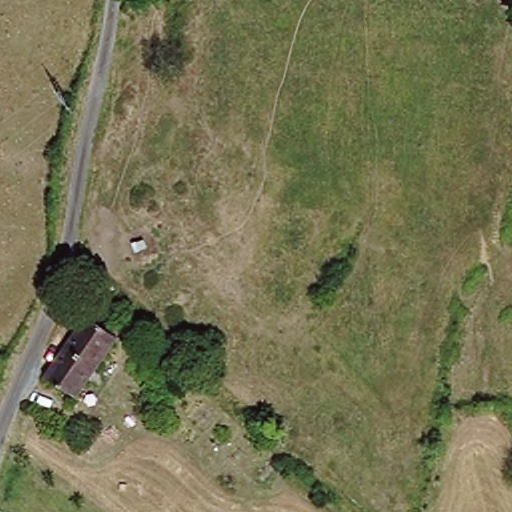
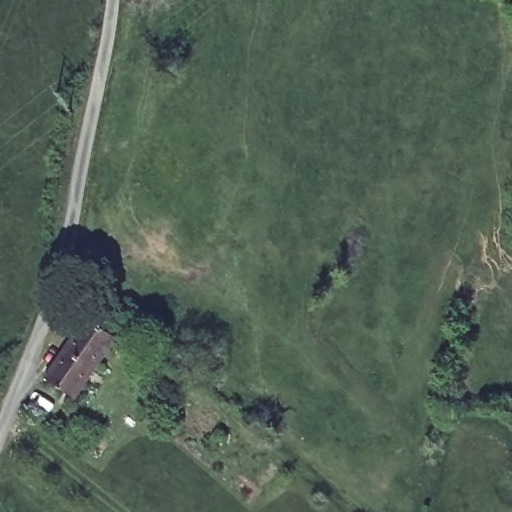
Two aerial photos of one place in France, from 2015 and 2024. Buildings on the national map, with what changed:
unchanged [(102,340),(68,400),(41,385),(75,325),(102,340)]

